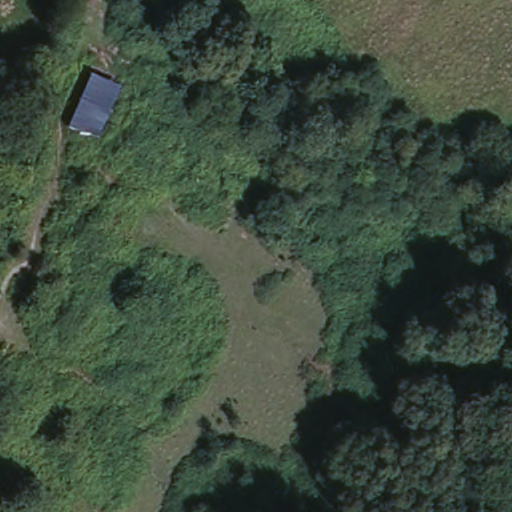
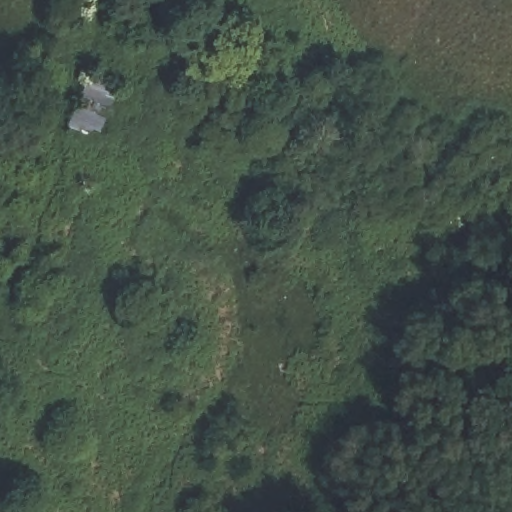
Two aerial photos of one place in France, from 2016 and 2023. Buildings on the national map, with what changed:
unchanged [(68,125),(89,74),(108,81),(85,132),(68,125)]

